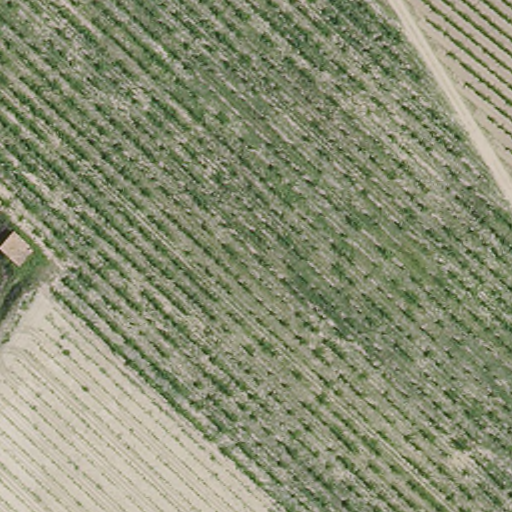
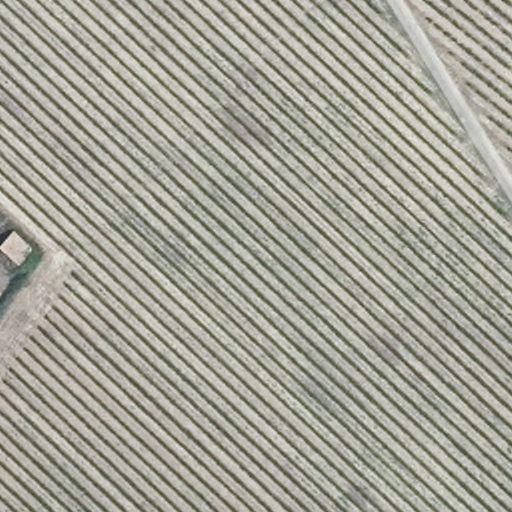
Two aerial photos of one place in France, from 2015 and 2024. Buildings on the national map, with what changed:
unchanged [(0,244),(8,235),(28,250),(9,266),(0,259),(0,244)]

